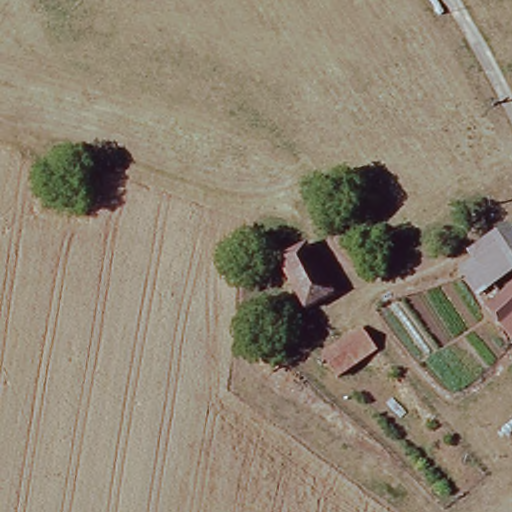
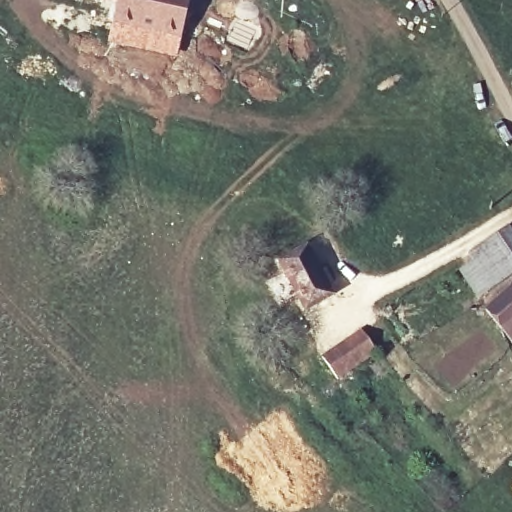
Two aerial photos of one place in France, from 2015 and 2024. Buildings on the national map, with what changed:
new [(105,0),(117,0),(117,3),(105,0)]
new [(117,0),(191,0),(177,59),(107,43),(117,3),(117,0)]
unchanged [(507,236),(512,243),(512,277),(480,302),(464,281),(478,270),(473,262),(507,236)]
unchanged [(310,246),(338,295),(310,312),(280,262),(310,246)]
unchanged [(511,345),(485,312),(512,291),(512,344),(511,345)]
unchanged [(325,362),(365,334),(380,352),(339,383),(325,362)]

